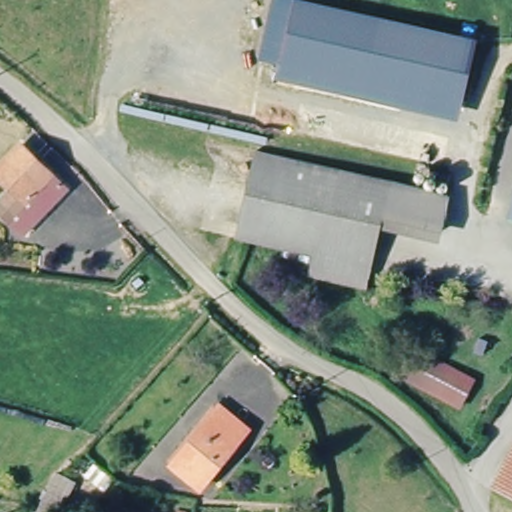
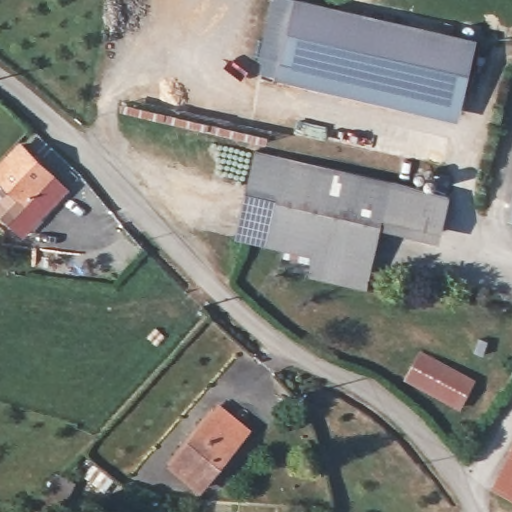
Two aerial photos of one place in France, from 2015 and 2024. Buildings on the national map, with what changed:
unchanged [(271,0),(297,0),(476,40),(459,120),(275,78),(275,76),(262,73),(265,60),(258,59),(271,0)]
unchanged [(22,233),(4,215),(18,197),(11,189),(0,179),(0,168),(21,146),(36,159),(62,185),(22,233)]
unchanged [(448,199),(438,234),(384,220),(365,292),(305,278),(311,257),(241,238),(260,155),(448,199)]
unchanged [(471,415),(412,383),(429,352),(486,381),(471,415)]
unchanged [(202,495),(171,475),(211,412),(244,433),(202,495)]
unchanged [(512,496),(494,486),(512,446),(512,496)]

